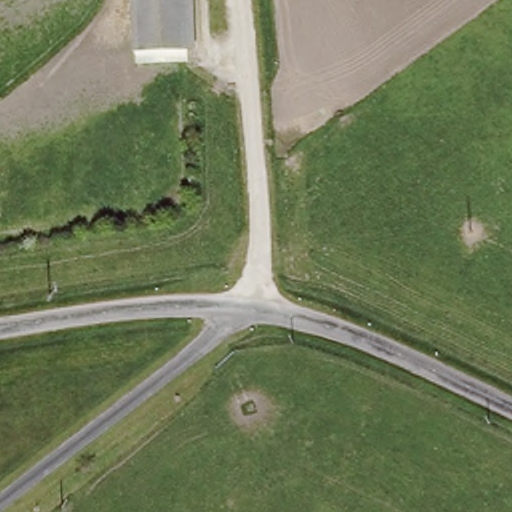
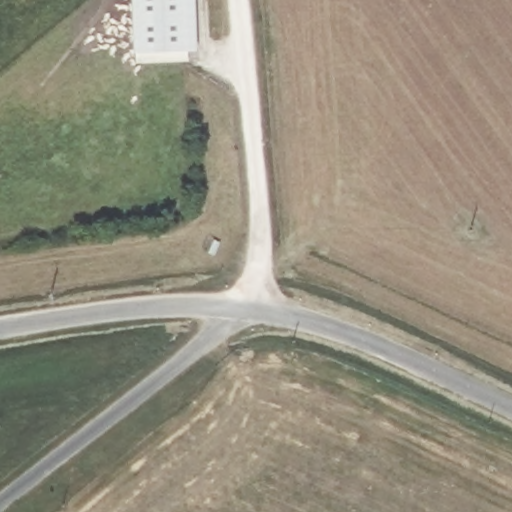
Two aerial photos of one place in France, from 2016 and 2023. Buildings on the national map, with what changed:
unchanged [(130,44),(128,0),(187,0),(189,41),(130,44)]

